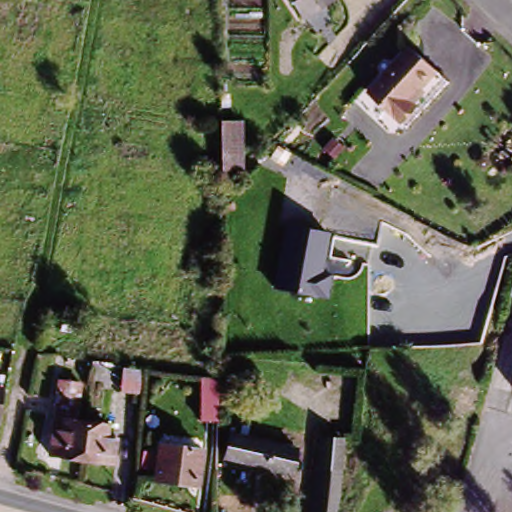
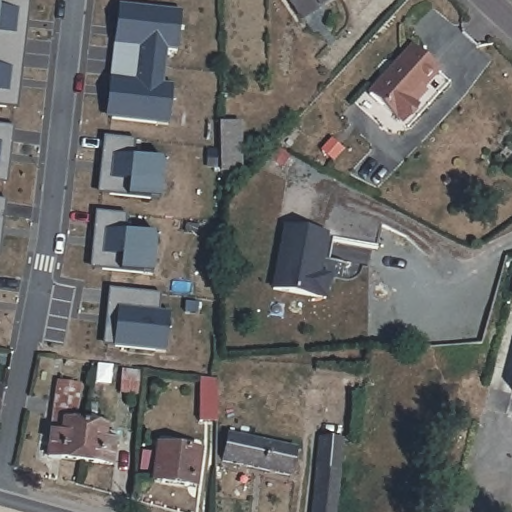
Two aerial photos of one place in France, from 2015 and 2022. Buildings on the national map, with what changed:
new [(33,0),(30,26),(27,52),(0,48),(0,0),(33,0)]
unchanged [(345,0),(310,24),(293,0),(345,0)]
new [(119,3),(124,4),(172,10),(183,11),(180,31),(178,51),(169,50),(167,67),(113,61),(116,34),(119,3)]
new [(16,108),(0,106),(0,48),(27,52),(24,77),(20,109),(16,108)]
unchanged [(424,105),(408,122),(377,93),(419,50),(447,74),(431,90),(435,94),(424,105)]
new [(159,124),(111,118),(106,117),(110,87),(113,61),(167,67),(165,84),(174,85),(172,105),(170,125),(159,124)]
unchanged [(223,122),(245,122),(244,171),(223,171),(223,122)]
new [(4,183),(0,183),(0,124),(15,126),(12,152),(8,183),(4,183)]
unchanged [(317,144),(328,134),(337,145),(326,155),(317,144)]
new [(150,199),(102,194),(98,193),(101,162),(104,136),(136,139),(134,157),(165,160),(163,180),(161,200),(150,199)]
new [(0,256),(0,198),(7,199),(4,226),(1,257),(0,256)]
new [(142,273),(94,268),(90,267),(93,237),(97,210),(129,214),(126,232),(158,235),(155,255),(153,275),(142,273)]
unchanged [(329,236),(324,274),(329,275),(326,299),(271,290),(281,227),(329,236)]
new [(157,351),(108,345),(103,345),(107,314),(110,287),(160,292),(158,310),(172,312),(170,332),(168,352),(157,351)]
unchanged [(197,373),(213,375),(213,421),(197,420),(197,373)]
unchanged [(512,378),(512,390),(509,390),(512,378)]
unchanged [(72,432),(83,435),(79,460),(49,455),(59,380),(78,383),(72,432)]
unchanged [(0,412),(0,390),(4,390),(0,412)]
unchanged [(326,445),(329,417),(351,420),(348,447),(341,512),(318,512),(326,445)]
unchanged [(106,426),(104,437),(116,440),(112,465),(79,460),(83,435),(85,422),(106,426)]
unchanged [(222,463),(229,437),(297,455),(290,481),(222,463)]
unchanged [(186,483),(186,486),(163,482),(163,481),(154,479),(158,444),(200,451),(194,485),(186,483)]

